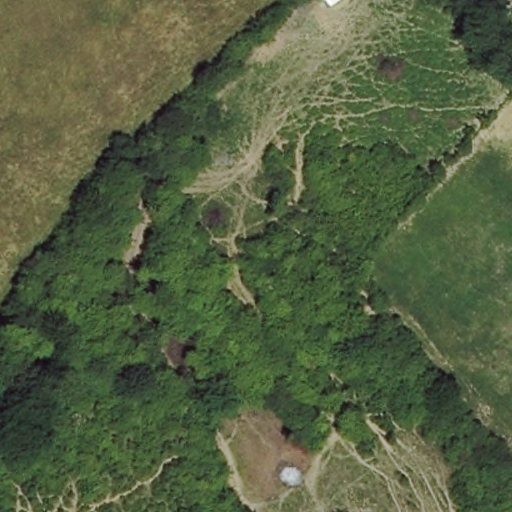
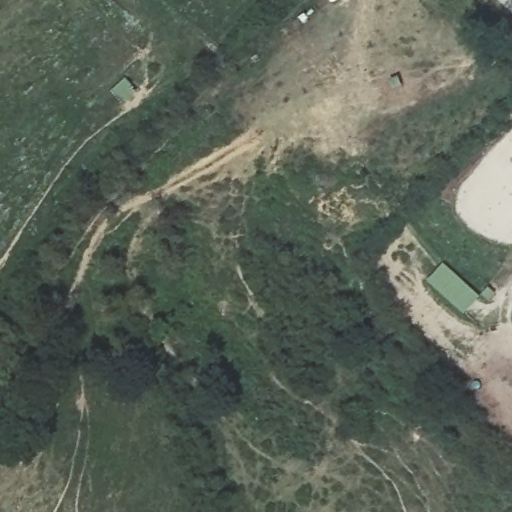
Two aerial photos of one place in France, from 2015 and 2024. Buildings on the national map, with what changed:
new [(465,317),(428,282),(445,264),(482,299),(465,317)]

